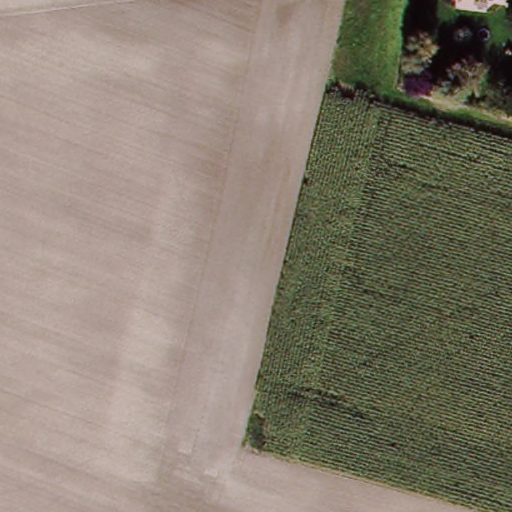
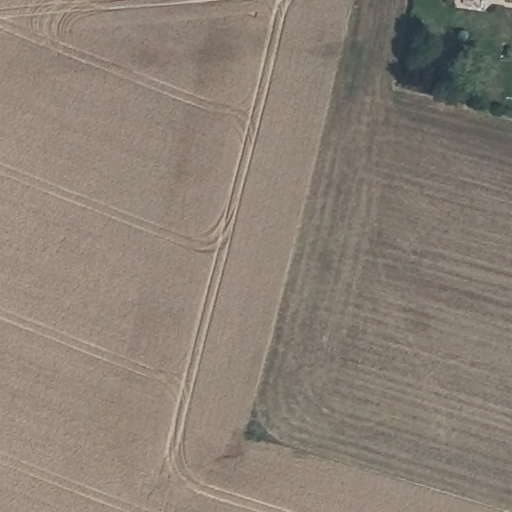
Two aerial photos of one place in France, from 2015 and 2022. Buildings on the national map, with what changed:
unchanged [(512,0),(512,2),(496,0),(512,0)]

